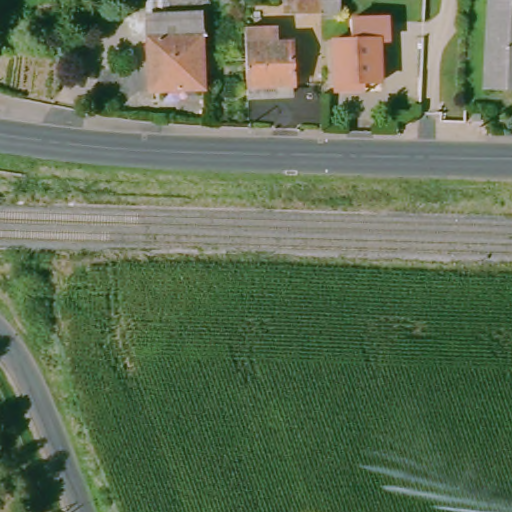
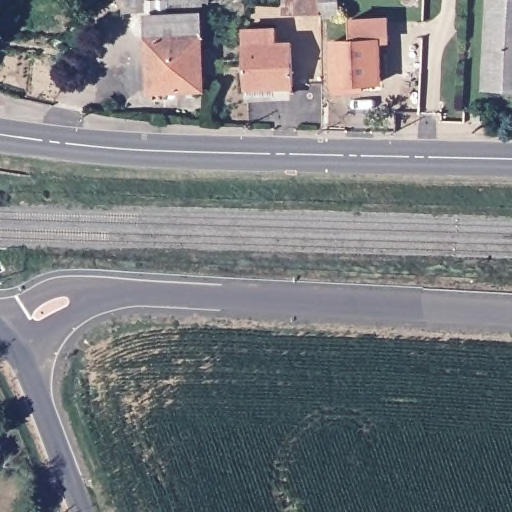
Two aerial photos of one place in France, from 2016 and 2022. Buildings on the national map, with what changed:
unchanged [(336,10),(317,11),(286,11),(284,1),(306,0),(336,0),(336,10)]
unchanged [(512,91),(485,89),(490,0),(512,0),(512,91)]
unchanged [(195,30),(142,33),(141,8),(194,4),(195,30)]
unchanged [(132,9),(133,36),(115,36),(114,10),(132,9)]
unchanged [(333,72),(334,39),(346,38),(347,16),(383,16),(383,45),(370,45),(367,73),(333,72)]
unchanged [(149,115),(143,39),(196,35),(198,74),(214,74),(215,95),(199,97),(201,113),(149,115)]
unchanged [(242,95),(241,43),(265,42),(265,58),(277,58),(278,95),(242,95)]

